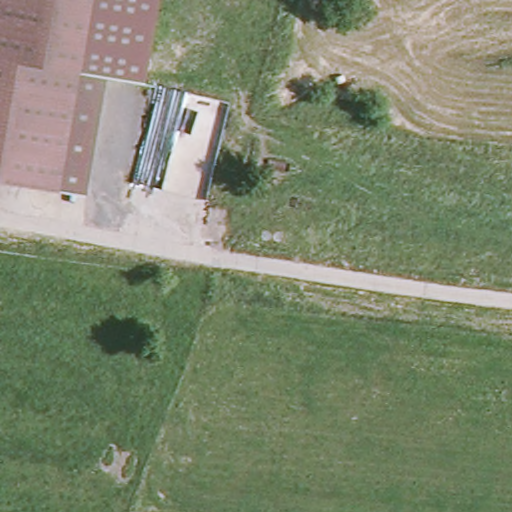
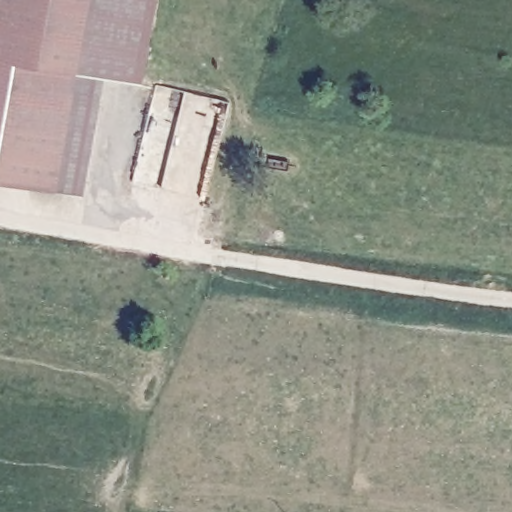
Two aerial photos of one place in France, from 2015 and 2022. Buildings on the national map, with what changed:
unchanged [(0,173),(0,0),(92,0),(62,184),(0,173)]
unchanged [(92,0),(158,0),(145,78),(105,73),(86,188),(62,184),(92,0)]

